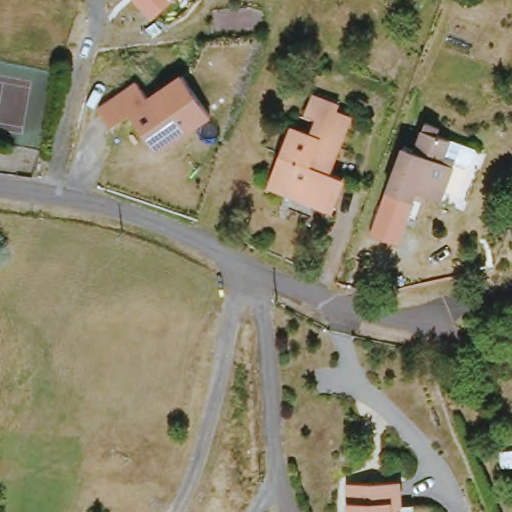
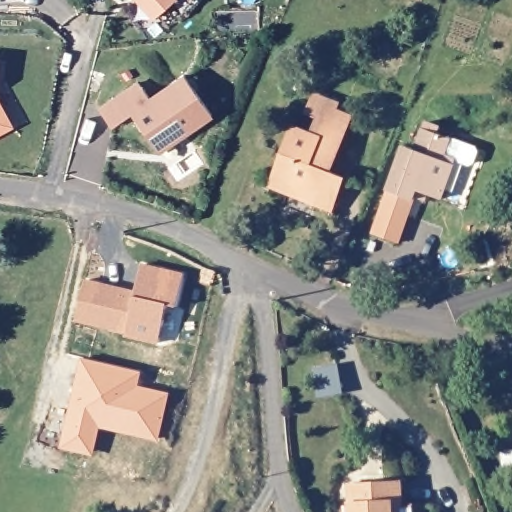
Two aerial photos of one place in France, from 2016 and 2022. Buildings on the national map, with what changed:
new [(135,1),(136,0),(176,0),(153,21),(135,1)]
unchanged [(147,95),(181,71),(212,114),(157,153),(130,111),(109,124),(97,105),(136,78),(147,95)]
unchanged [(319,212),(322,202),(276,190),(292,137),(312,141),(318,123),(305,120),(312,99),(339,107),(337,116),(352,121),(336,176),(352,180),(339,220),(319,212)]
new [(0,134),(0,101),(13,126),(0,134)]
unchanged [(377,232),(386,207),(408,145),(420,149),(429,121),(444,126),(441,132),(455,137),(449,154),(460,158),(446,198),(432,193),(430,200),(419,195),(412,216),(403,243),(377,232)]
new [(185,275),(177,307),(168,305),(159,343),(125,337),(126,334),(110,330),(111,327),(76,318),(85,280),(137,290),(142,265),(185,275)]
new [(139,373),(135,390),(167,397),(156,441),(137,437),(137,433),(97,422),(94,426),(86,456),(61,449),(81,360),(139,373)]
unchanged [(361,479),(410,480),(411,506),(406,506),(406,512),(360,512),(361,479)]

